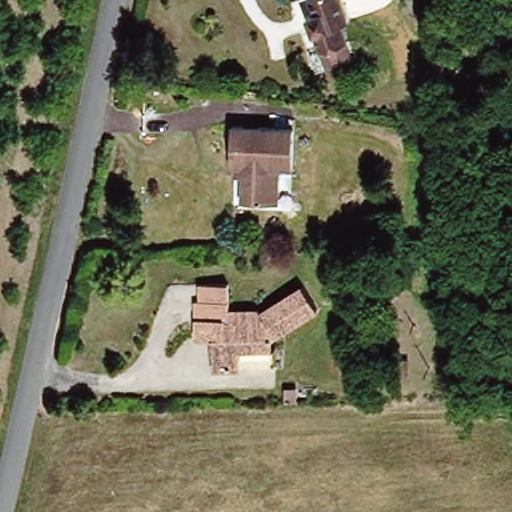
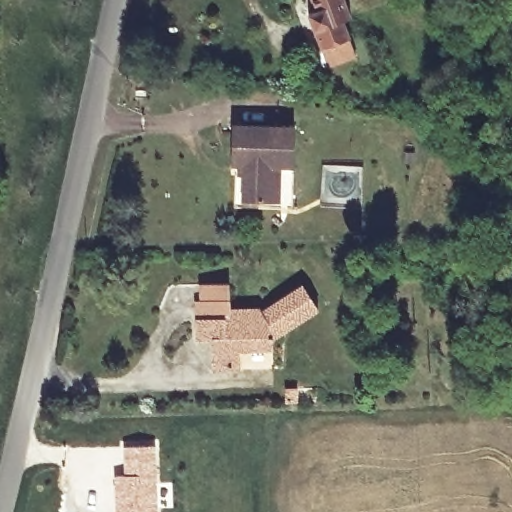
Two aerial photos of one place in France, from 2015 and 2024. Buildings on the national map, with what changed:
unchanged [(307,13),(314,10),(309,0),(344,0),(350,10),(343,13),(362,51),(325,69),(315,52),(325,48),(307,13)]
unchanged [(302,162),(288,162),(289,195),(248,196),(247,164),(239,164),(239,123),(302,124),(302,162)]
unchanged [(243,349),(247,375),(222,379),(217,351),(198,354),(191,313),(204,311),(201,294),(228,290),(234,324),(252,320),(252,317),(304,281),(321,305),(275,337),(277,345),(243,349)]
new [(115,512),(114,475),(125,474),(123,446),(156,445),(158,512),(115,512)]

